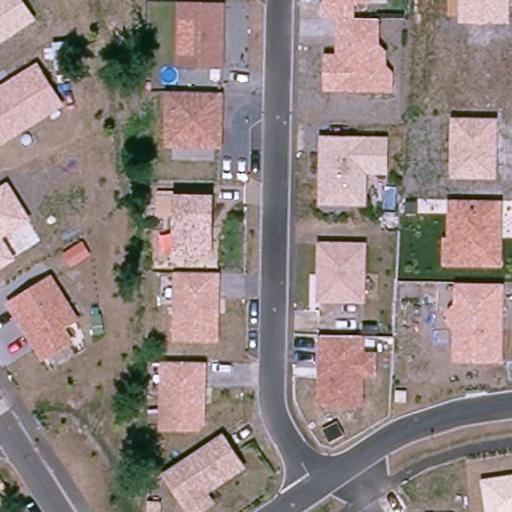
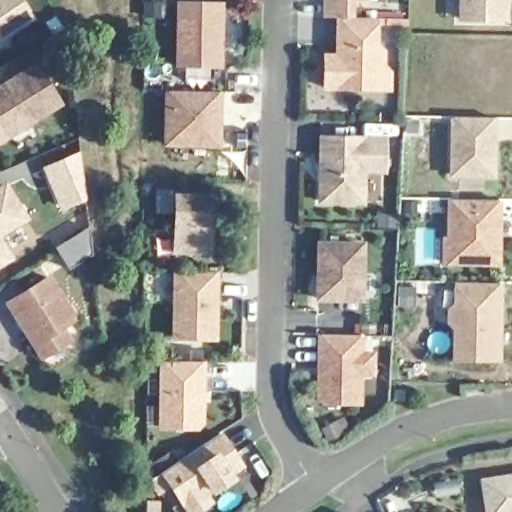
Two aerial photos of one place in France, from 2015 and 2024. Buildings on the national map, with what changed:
unchanged [(0,45),(0,0),(23,0),(36,20),(0,45)]
unchanged [(355,17),(380,19),(379,46),(388,51),(386,66),(394,72),(393,92),(324,91),(324,52),(337,53),(338,17),(324,16),(324,0),(368,0),(368,2),(355,2),(355,17)]
unchanged [(459,24),(459,0),(509,0),(508,23),(459,24)]
unchanged [(222,68),(176,69),(177,1),(226,2),(222,68)]
unchanged [(65,105),(0,144),(0,86),(36,63),(65,105)]
unchanged [(220,148),(164,147),(166,92),(223,92),(220,148)]
unchanged [(496,179),(450,179),(450,119),(498,119),(496,179)]
unchanged [(366,205),(317,205),(320,135),(389,137),(387,174),(366,176),(366,205)]
new [(61,212),(43,167),(73,154),(75,159),(78,157),(84,172),(81,203),(61,212)]
unchanged [(0,270),(0,186),(6,182),(30,221),(3,239),(14,261),(0,270)]
unchanged [(174,219),(156,217),(156,194),(176,195),(213,195),(211,257),(173,256),(174,219)]
unchanged [(504,270),(439,268),(439,239),(447,238),(448,202),(501,201),(504,270)]
unchanged [(367,242),(366,304),(318,305),(317,242),(367,242)]
unchanged [(217,342),(174,342),(173,272),(221,272),(217,342)]
unchanged [(48,278),(74,320),(60,328),(68,342),(41,358),(7,304),(48,278)]
unchanged [(502,363),(452,361),(451,330),(445,326),(445,310),(453,305),(455,285),(503,285),(502,363)]
unchanged [(378,352),(378,376),(364,376),(364,406),(318,407),(319,336),(365,338),(364,353),(378,352)]
unchanged [(205,432),(160,432),(161,362),(206,362),(205,432)]
unchanged [(216,505),(203,512),(186,512),(161,473),(222,433),(246,467),(210,492),(216,505)]
unchanged [(481,480),(512,474),(512,512),(486,512),(481,480)]

